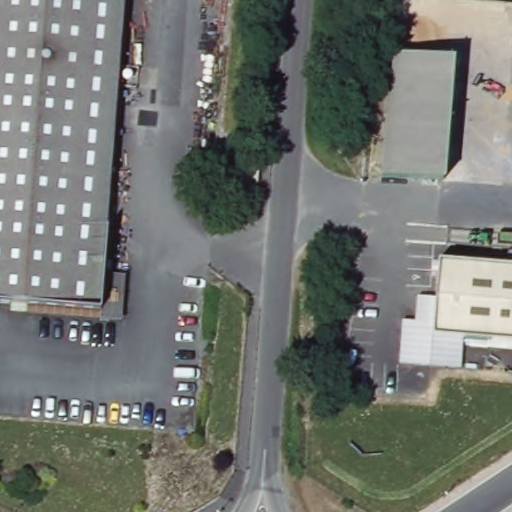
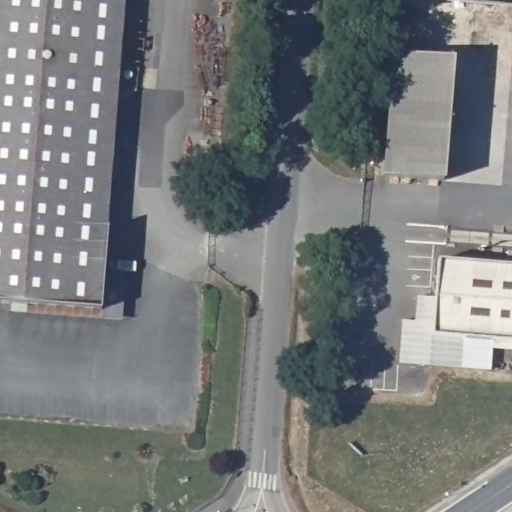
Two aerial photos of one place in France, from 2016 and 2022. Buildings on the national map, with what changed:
unchanged [(112,134),(99,311),(0,303),(0,0),(123,0),(112,134)]
unchanged [(394,52),(454,57),(444,177),(385,173),(394,52)]
unchanged [(512,268),(512,344),(431,338),(437,262),(512,268)]

